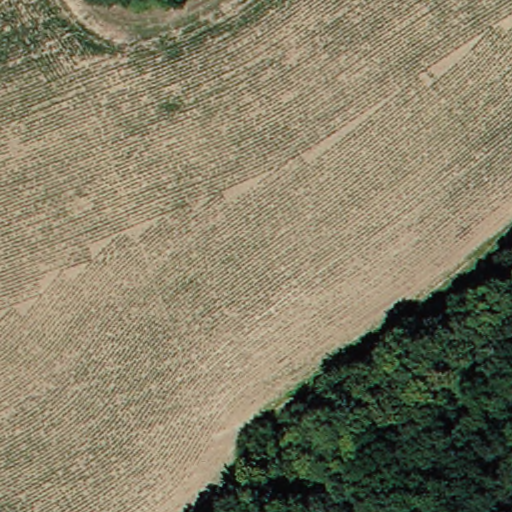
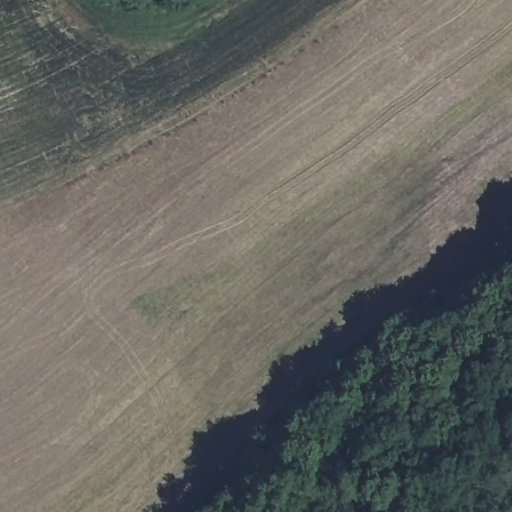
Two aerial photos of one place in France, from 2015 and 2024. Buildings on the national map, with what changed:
unchanged [(228,501),(225,497),(229,494),(246,481),(249,485),(258,496),(237,512),(228,501)]

